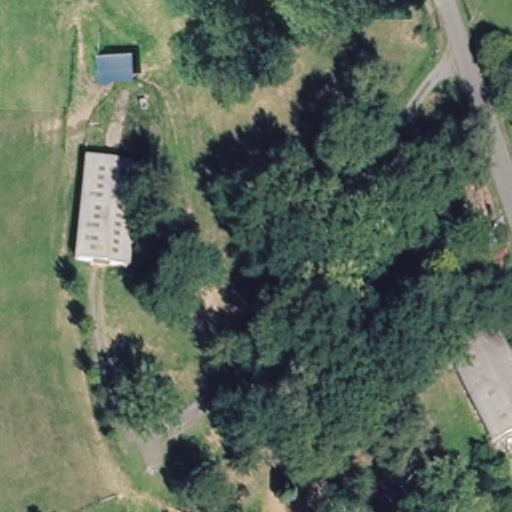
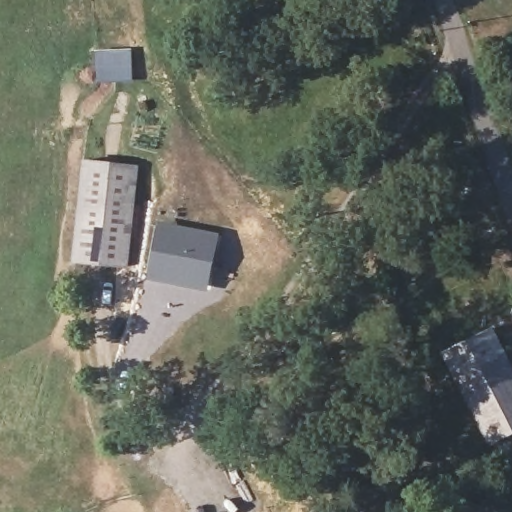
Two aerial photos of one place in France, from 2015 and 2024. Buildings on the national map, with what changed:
unchanged [(511,98),(496,54),(512,49),(512,98),(511,98)]
new [(132,51),(131,84),(99,84),(97,51),(132,51)]
unchanged [(127,271),(70,263),(84,166),(139,173),(127,271)]
new [(159,218),(221,232),(207,292),(146,278),(159,218)]
unchanged [(499,333),(512,361),(512,438),(492,447),(448,356),(499,333)]

